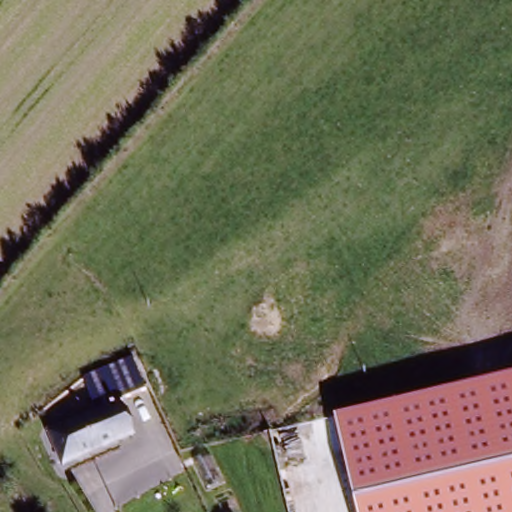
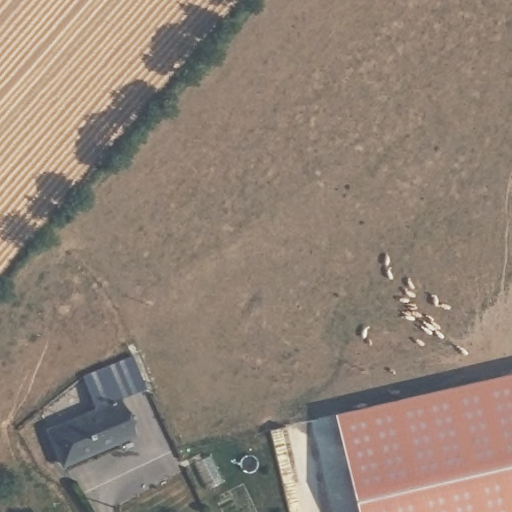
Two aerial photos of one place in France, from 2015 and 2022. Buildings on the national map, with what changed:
unchanged [(334,412),(512,372),(512,512),(357,512),(334,412)]
unchanged [(132,432),(59,465),(41,423),(94,400),(87,385),(107,376),(113,391),(132,432)]

